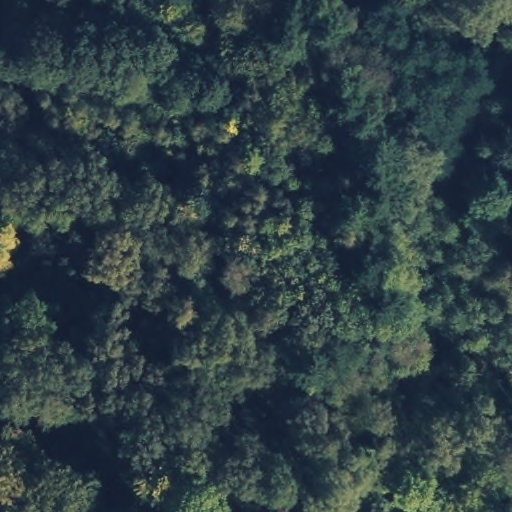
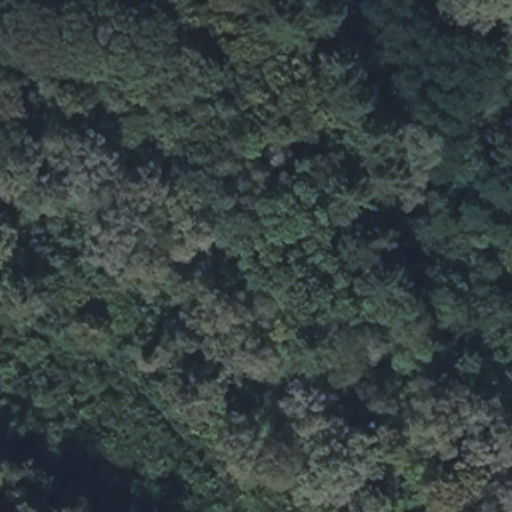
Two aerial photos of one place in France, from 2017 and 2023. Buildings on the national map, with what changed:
unchanged [(512,156),(512,196),(498,162),(512,156)]

